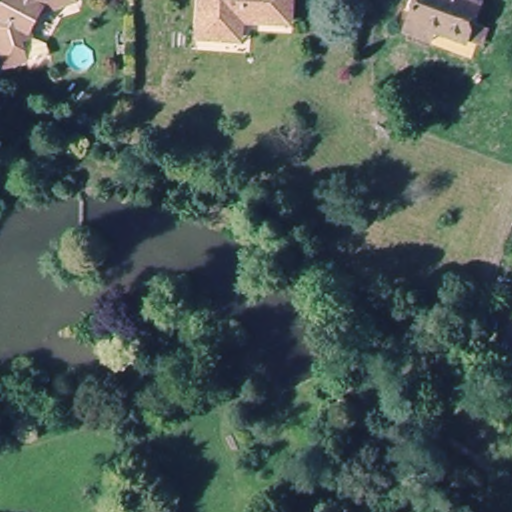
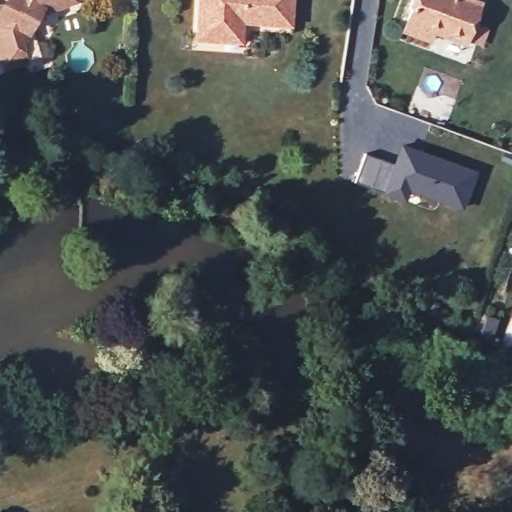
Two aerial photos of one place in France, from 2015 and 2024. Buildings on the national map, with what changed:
unchanged [(39,14),(36,10),(21,24),(23,31),(15,34),(20,54),(0,59),(0,3),(0,4),(3,0),(69,0),(70,5),(39,14)]
unchanged [(210,40),(197,39),(199,0),(294,0),(293,6),(293,24),(282,24),(243,22),(243,25),(243,38),(244,40),(221,41),(210,40)]
unchanged [(465,44),(435,34),(432,48),(401,39),(406,24),(415,0),(469,0),(479,4),(469,29),(480,34),(474,49),(465,44)]
new [(478,170),(461,210),(408,192),(405,201),(382,191),(355,180),(365,153),(393,163),(400,143),(478,170)]

